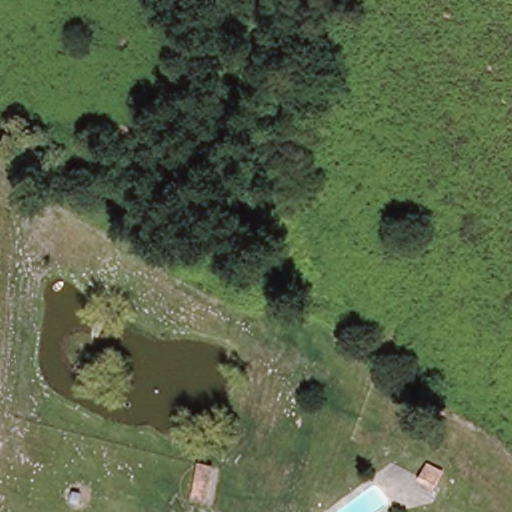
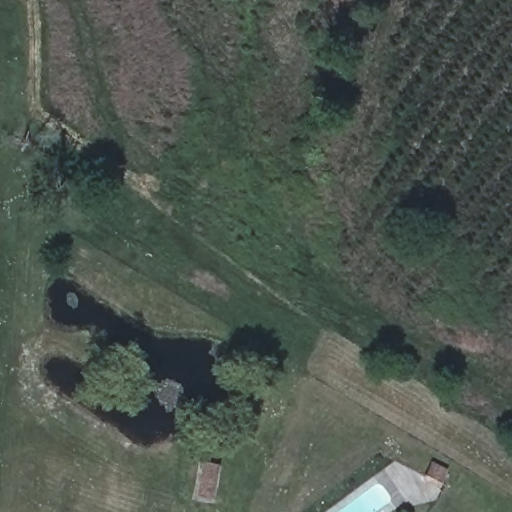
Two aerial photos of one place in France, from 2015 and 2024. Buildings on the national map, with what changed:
unchanged [(218,463),(211,499),(197,495),(201,458),(218,463)]
unchanged [(445,477),(427,503),(411,493),(430,467),(445,477)]

